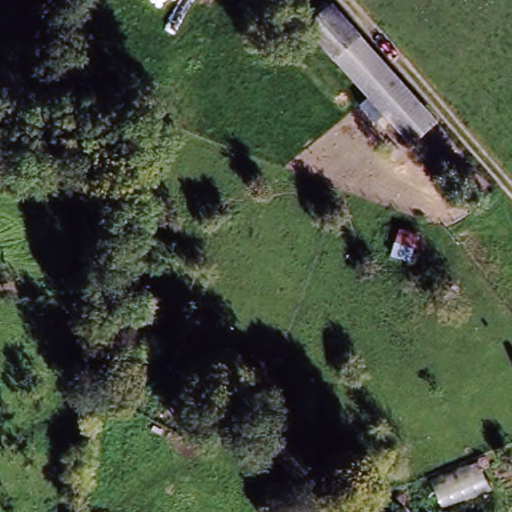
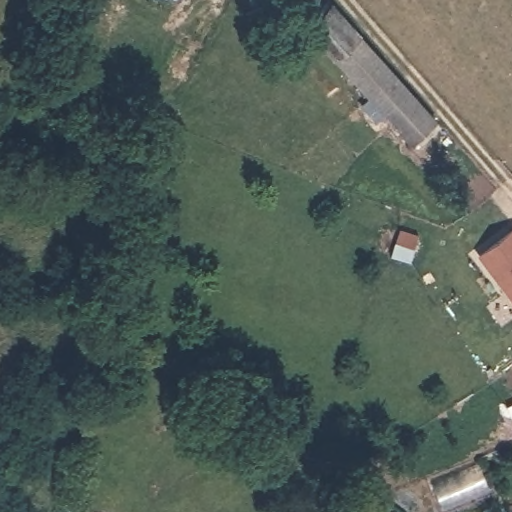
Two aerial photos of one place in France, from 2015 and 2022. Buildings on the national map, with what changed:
unchanged [(431,121),(407,143),(303,28),(328,6),(431,121)]
new [(512,229),(512,295),(480,257),(512,229)]
unchanged [(392,512),(390,512),(390,511),(392,512)]

